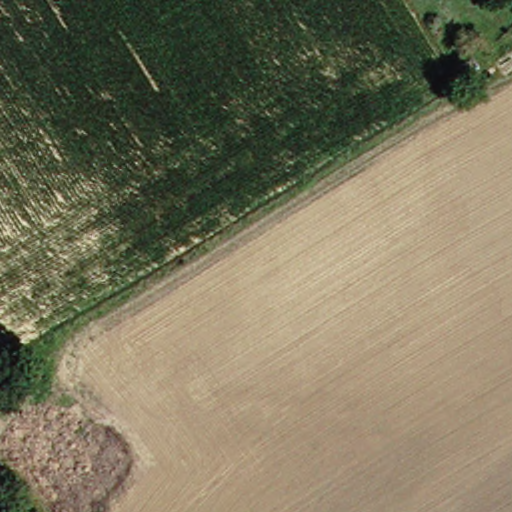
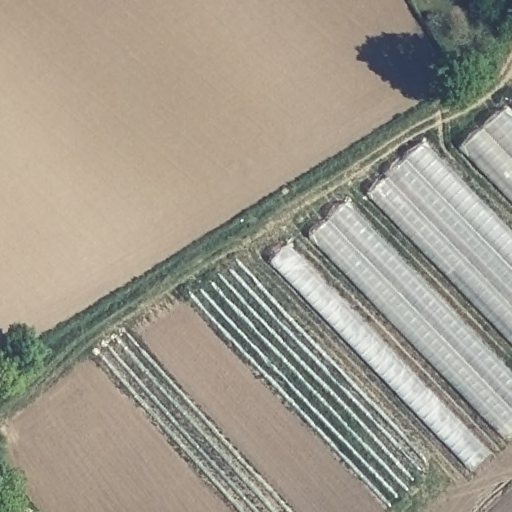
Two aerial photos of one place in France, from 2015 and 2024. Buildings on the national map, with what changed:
new [(507,109),(512,114),(512,203),(461,150),(507,109)]
new [(422,142),(512,234),(512,344),(370,195),(422,142)]
new [(310,239),(345,203),(512,374),(512,433),(506,440),(310,239)]
new [(473,474),(268,264),(288,245),(493,455),(473,474)]

